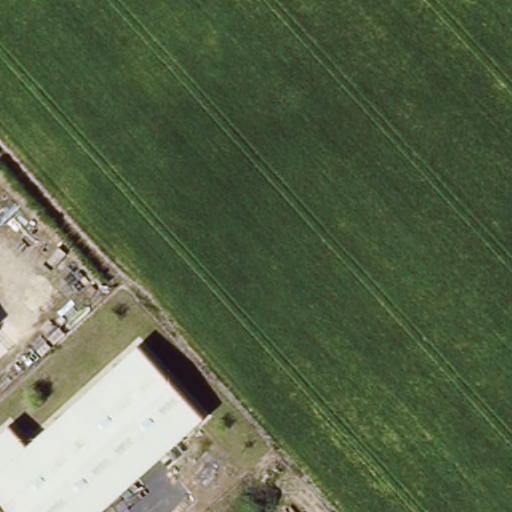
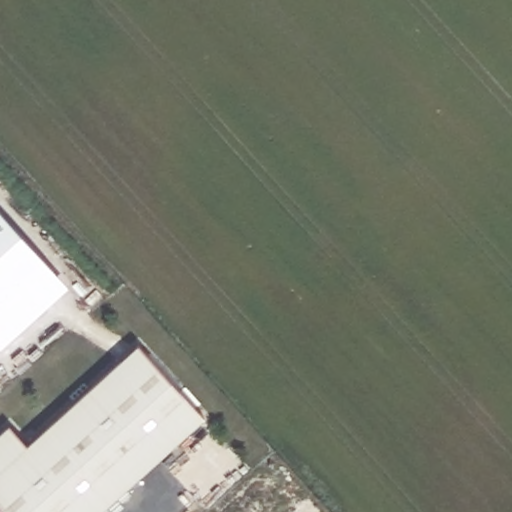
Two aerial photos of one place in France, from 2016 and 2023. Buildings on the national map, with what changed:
new [(68,286),(1,347),(0,345),(0,210),(68,286)]
unchanged [(27,444),(138,343),(205,417),(98,512),(5,512),(0,506),(0,432),(9,423),(27,444)]

